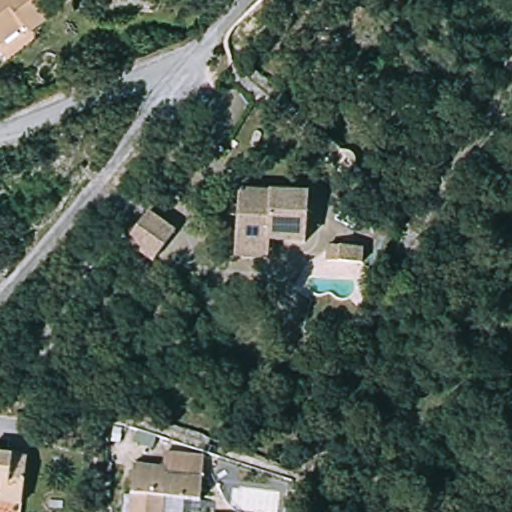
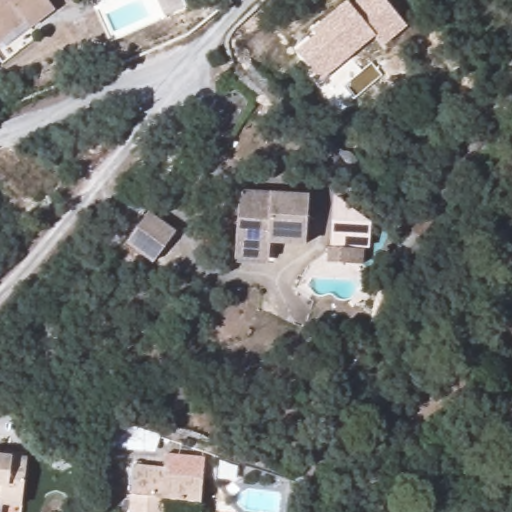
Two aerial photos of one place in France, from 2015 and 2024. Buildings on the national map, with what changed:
unchanged [(59,7),(34,26),(29,20),(0,42),(0,0),(53,0),(59,7)]
new [(317,34),(312,29),(347,0),(350,4),(356,0),(386,0),(408,26),(384,45),(376,35),(320,81),(296,52),(317,34)]
unchanged [(314,196),(310,246),(273,244),(272,261),(240,260),(244,193),(314,196)]
unchanged [(125,246),(147,215),(173,235),(150,265),(125,246)]
unchanged [(333,264),(335,247),(374,249),(373,266),(333,264)]
unchanged [(135,512),(140,468),(171,470),(173,451),(209,454),(203,511),(172,508),(171,512),(135,512)]
unchanged [(0,453),(29,456),(23,504),(0,502),(0,453)]

